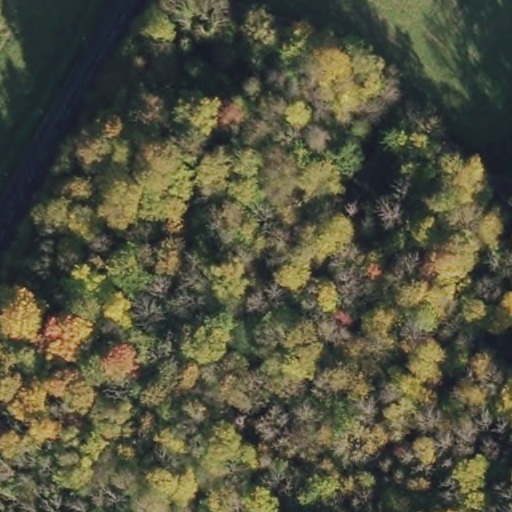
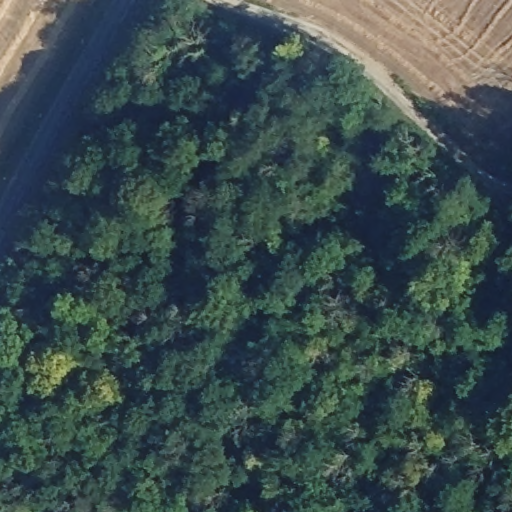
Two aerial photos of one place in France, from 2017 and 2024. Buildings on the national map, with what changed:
unchanged [(379,150),(401,169),(373,202),(352,185),(379,150)]

